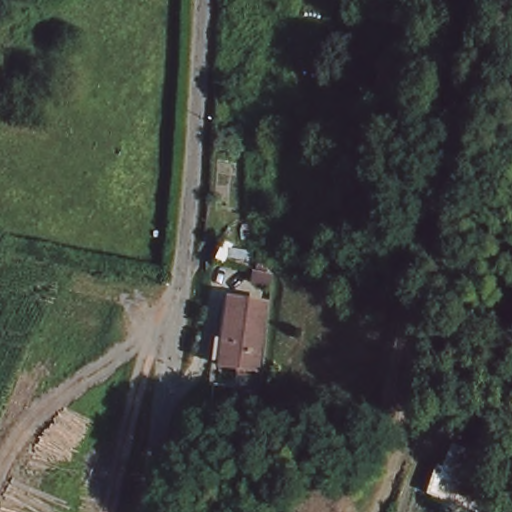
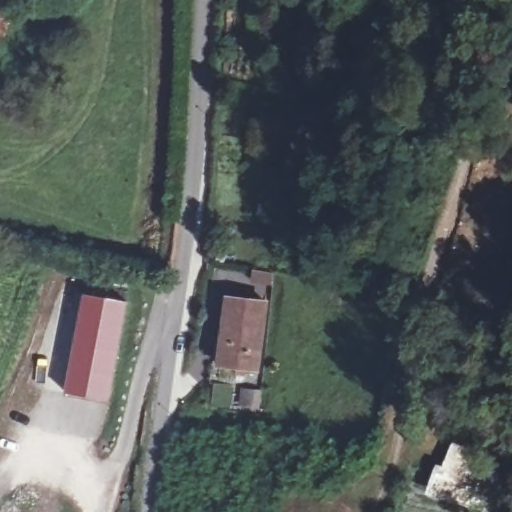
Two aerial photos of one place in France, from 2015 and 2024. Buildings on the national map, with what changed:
new [(82,293),(126,301),(107,400),(63,393),(82,293)]
unchanged [(224,300),(264,305),(254,370),(215,365),(224,300)]
unchanged [(248,382),(246,397),(230,395),(232,380),(248,382)]
unchanged [(490,452),(476,512),(415,495),(438,435),(490,452)]

